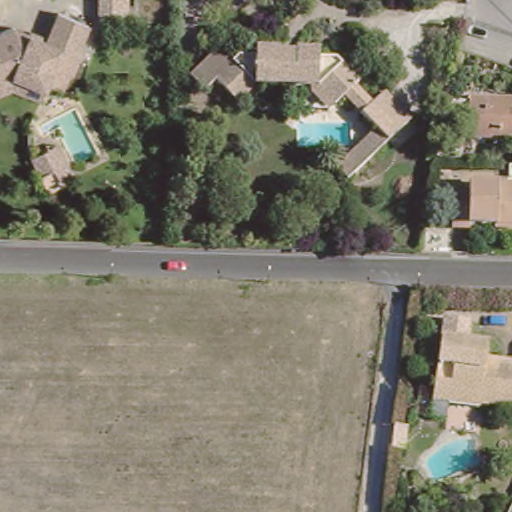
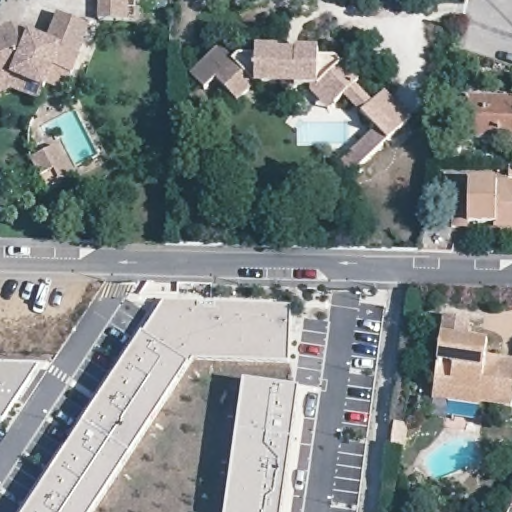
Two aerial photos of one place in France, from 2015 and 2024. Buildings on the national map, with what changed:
unchanged [(97,22),(98,0),(126,0),(125,23),(97,22)]
unchanged [(0,90),(0,27),(7,24),(42,38),(53,12),(83,24),(72,52),(74,52),(67,71),(65,70),(57,87),(41,81),(39,85),(34,97),(7,87),(0,90)]
unchanged [(359,77),(354,81),(372,99),(384,87),(410,115),(347,176),(335,164),(376,124),(344,91),(329,106),(312,88),(317,82),(255,81),(237,97),(215,74),(204,85),(190,70),(220,42),(234,57),(240,51),(255,52),(255,44),(278,45),(278,47),(295,48),(295,45),(319,46),(318,54),(337,54),(359,77)]
unchanged [(467,135),(468,93),(512,94),(512,136),(467,135)]
unchanged [(56,148),(72,179),(61,185),(54,171),(40,177),(32,161),(56,148)]
unchanged [(61,184),(61,185),(47,192),(40,177),(54,171),(61,184)]
unchanged [(464,225),(464,230),(447,229),(447,194),(464,194),(464,184),(512,185),(512,226),(464,225)]
new [(194,361),(188,368),(94,512),(28,512),(142,337),(163,304),(291,308),(288,363),(194,361)]
unchanged [(479,400),(479,402),(432,396),(440,332),(487,338),(485,353),(512,356),(512,396),(511,404),(479,400)]
new [(0,424),(0,369),(39,370),(3,425),(0,424)]
new [(244,383),(299,391),(282,512),(225,512),(244,383)]
unchanged [(404,450),(391,448),(394,425),(407,427),(404,450)]

